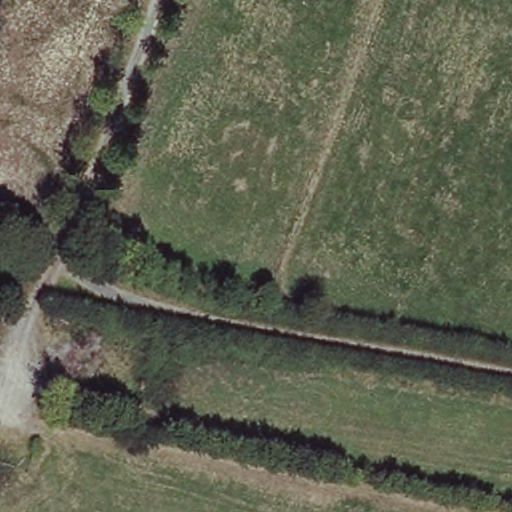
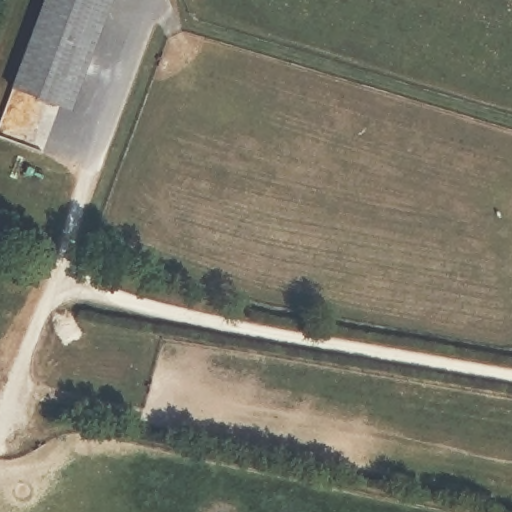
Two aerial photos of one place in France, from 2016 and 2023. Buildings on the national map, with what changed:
new [(45,0),(97,0),(110,5),(69,118),(59,115),(42,157),(0,140),(0,126),(10,96),(45,0)]
new [(110,5),(97,0),(112,0),(110,5)]

